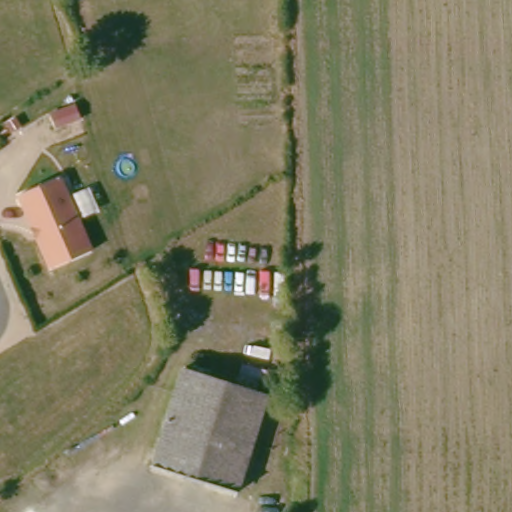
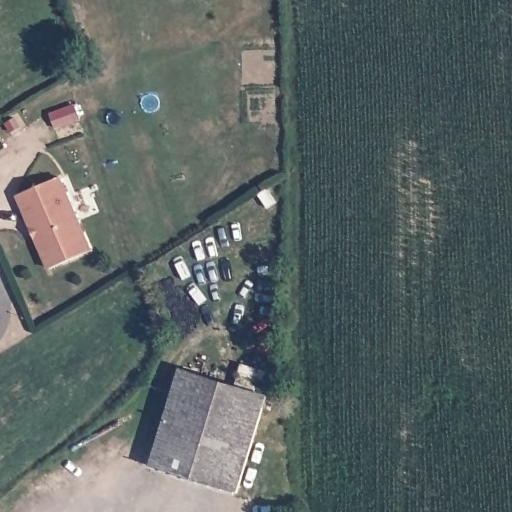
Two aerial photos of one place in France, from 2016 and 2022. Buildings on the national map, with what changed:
unchanged [(81,119),(56,126),(52,112),(76,104),(81,119)]
unchanged [(91,251),(50,269),(36,237),(38,236),(35,229),(32,228),(18,195),(59,178),(91,251)]
unchanged [(265,395),(237,491),(146,465),(174,368),(265,395)]

